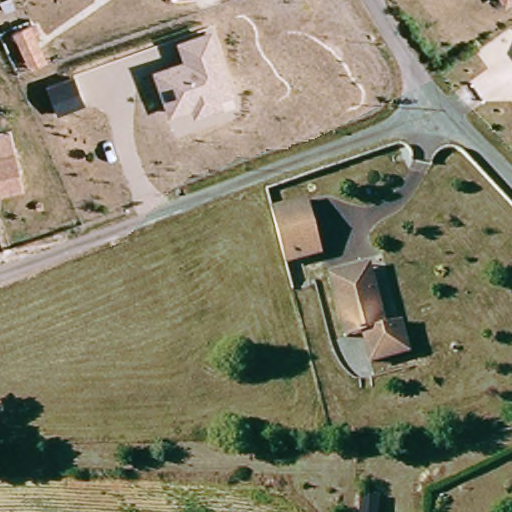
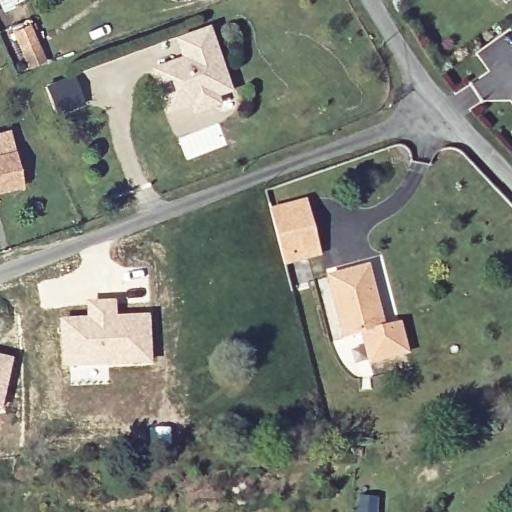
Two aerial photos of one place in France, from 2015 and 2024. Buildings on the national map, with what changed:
unchanged [(512,4),(508,6),(504,0),(512,0),(512,4)]
unchanged [(43,49),(22,58),(11,32),(33,23),(43,49)]
unchanged [(234,93),(220,98),(222,107),(193,116),(190,107),(167,115),(153,71),(182,60),(175,40),(211,27),(234,93)]
unchanged [(8,129),(23,187),(0,193),(0,132),(8,129)]
unchanged [(303,266),(291,270),(280,218),(277,208),(316,199),(318,209),(327,252),(329,262),(303,266)]
unchanged [(411,358),(374,365),(368,337),(350,341),(335,281),(368,274),(375,273),(379,286),(390,331),(405,330),(411,358)]
new [(86,316),(85,301),(116,299),(118,315),(150,313),(154,364),(61,369),(59,318),(86,316)]
new [(12,359),(0,413),(0,357),(12,359)]

